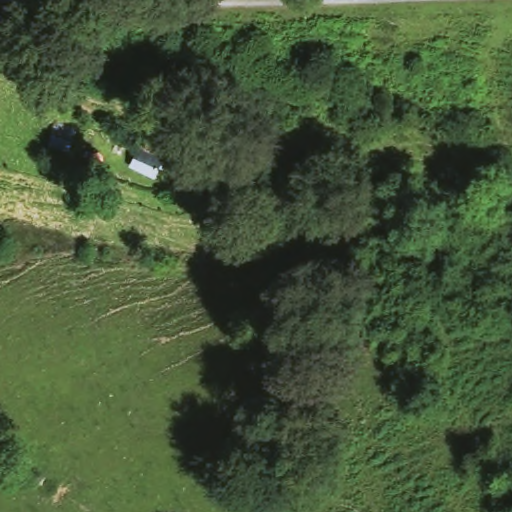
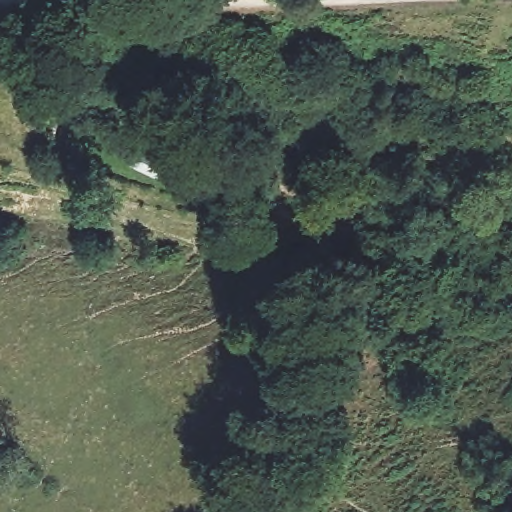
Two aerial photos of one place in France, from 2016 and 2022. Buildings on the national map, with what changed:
unchanged [(134,151),(165,166),(156,182),(127,169),(134,151)]

